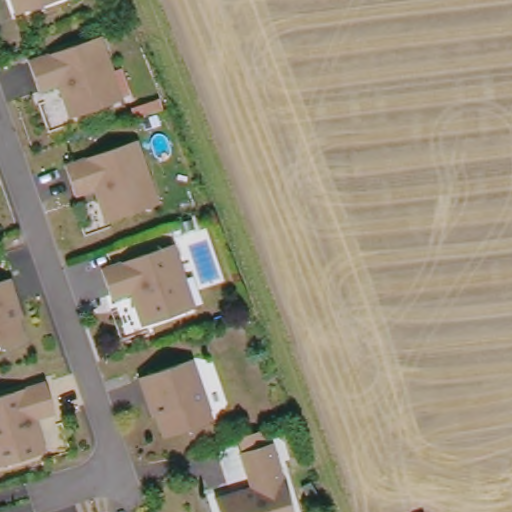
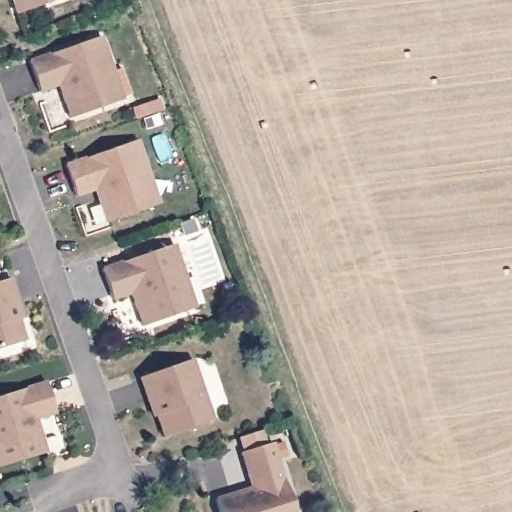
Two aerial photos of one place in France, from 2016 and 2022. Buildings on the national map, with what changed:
unchanged [(12,0),(60,0),(17,14),(12,0)]
unchanged [(121,102),(76,118),(65,84),(45,91),(35,61),(107,36),(119,71),(129,100),(121,102)]
unchanged [(157,206),(112,222),(100,188),(82,195),(71,165),(142,140),(155,175),(165,204),(157,206)]
unchanged [(194,310),(149,325),(137,292),(118,298),(108,269),(180,244),(191,278),(201,307),(194,310)]
unchanged [(18,304),(15,305),(25,341),(0,349),(0,283),(11,279),(18,304)]
unchanged [(165,437),(152,401),(149,402),(140,378),(192,360),(214,420),(165,437)]
unchanged [(56,413),(37,419),(47,453),(2,466),(0,467),(0,397),(47,382),(56,413)]
unchanged [(259,492),(247,457),(249,456),(245,443),(267,436),(268,435),(272,449),(276,448),(296,512),(223,512),(220,504),(259,492)]

